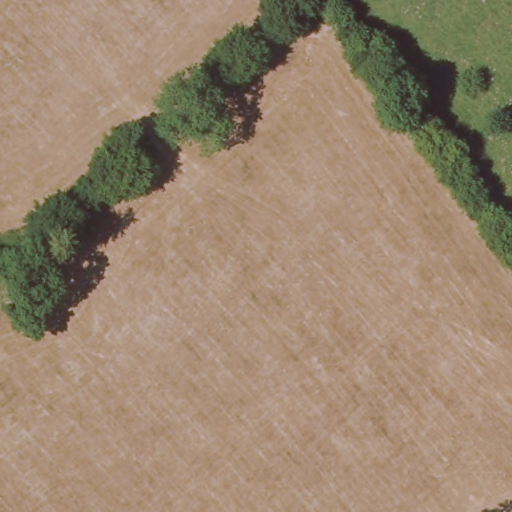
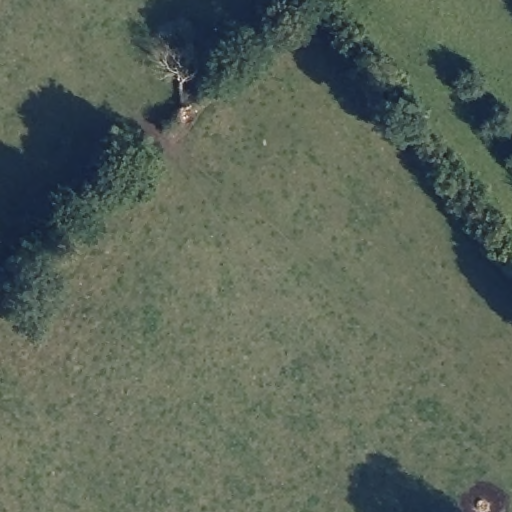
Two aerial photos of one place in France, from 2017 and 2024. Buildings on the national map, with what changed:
[]

